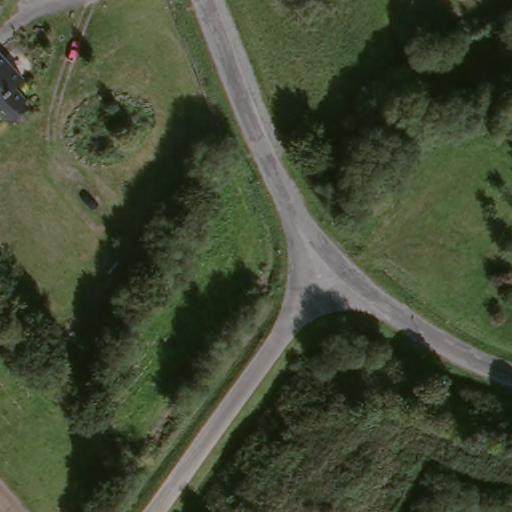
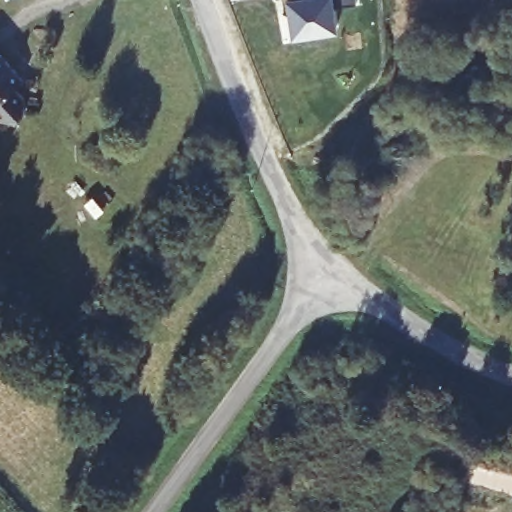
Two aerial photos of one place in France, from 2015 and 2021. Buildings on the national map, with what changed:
new [(290,4),(299,2),(299,0),(356,0),(357,6),(333,9),(337,35),(294,41),(290,4)]
unchanged [(26,83),(17,91),(28,102),(27,114),(19,122),(6,123),(4,120),(0,124),(0,56),(26,83)]

